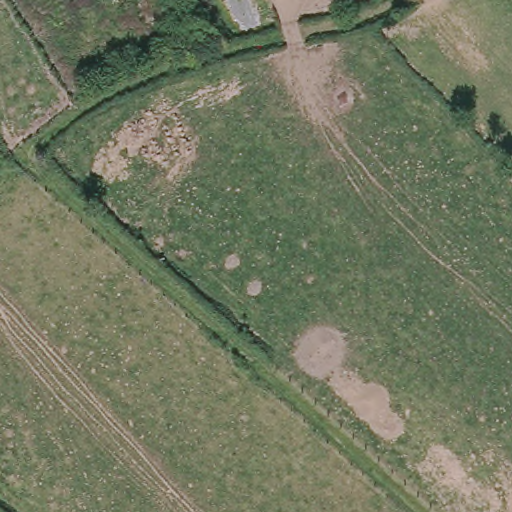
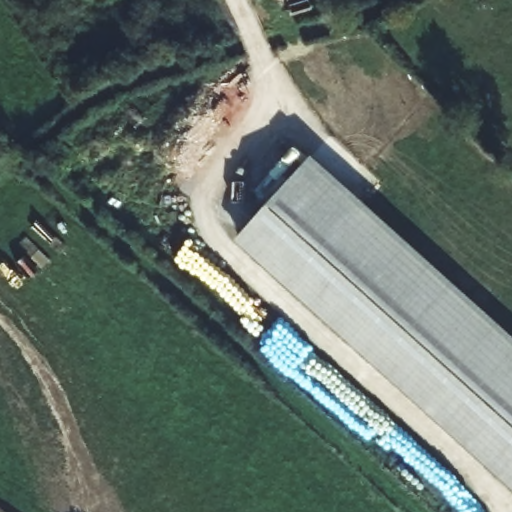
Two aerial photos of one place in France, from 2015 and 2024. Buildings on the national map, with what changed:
new [(237,240),(314,154),(512,332),(512,487),(237,240)]

